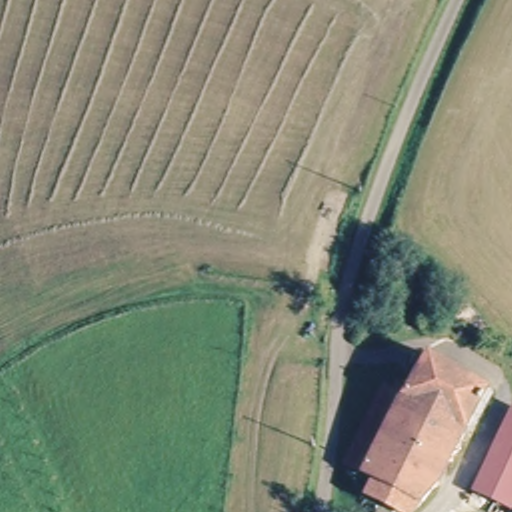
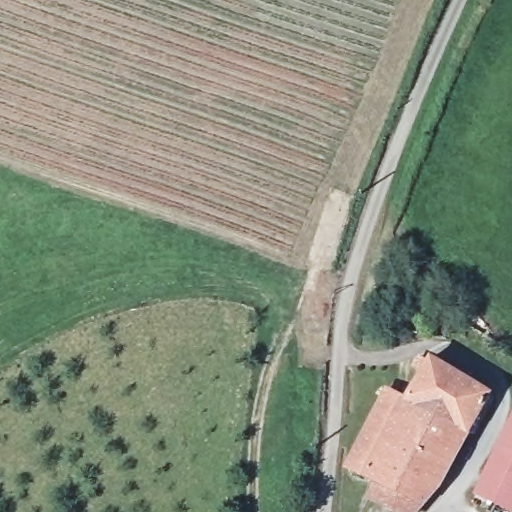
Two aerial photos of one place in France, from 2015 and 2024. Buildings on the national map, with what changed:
unchanged [(411,393),(418,382),(412,378),(418,367),(426,371),(428,367),(485,404),(458,457),(422,512),(418,512),(346,468),(398,385),(411,393)]
unchanged [(484,494),(479,492),(512,409),(512,508),(484,494)]

